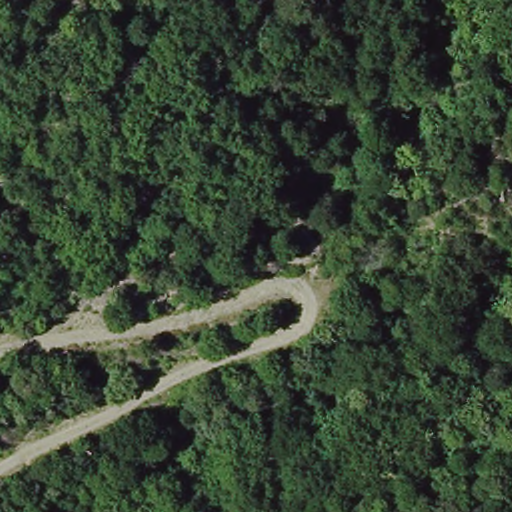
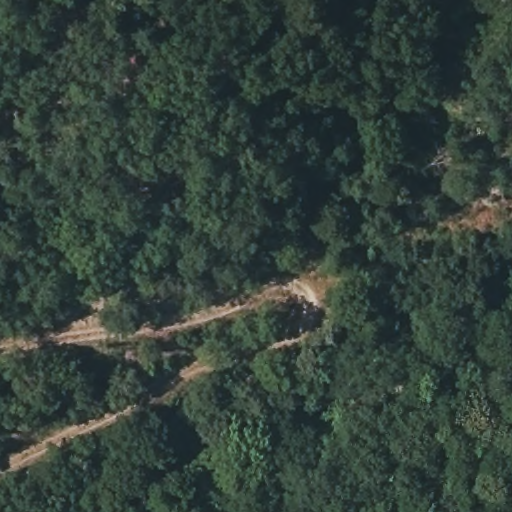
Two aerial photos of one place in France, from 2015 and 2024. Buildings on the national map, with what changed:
unchanged [(474,178),(475,187),(465,189),(465,180),(474,178)]

